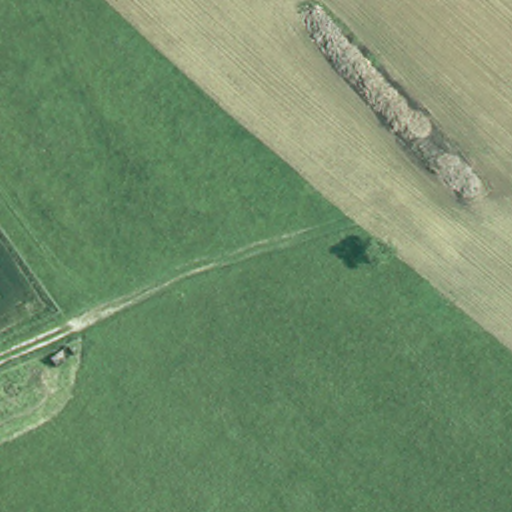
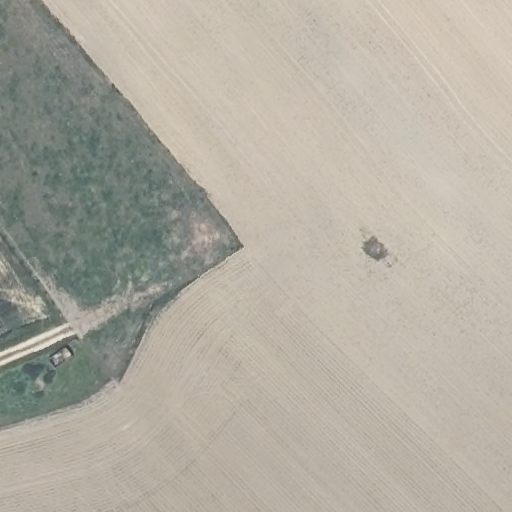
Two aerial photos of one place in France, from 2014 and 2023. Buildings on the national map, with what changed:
[]

